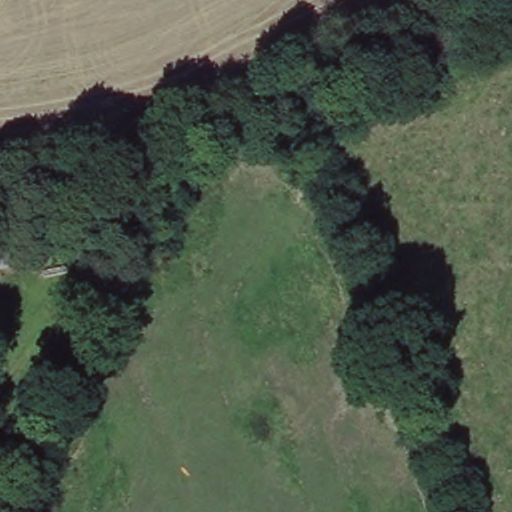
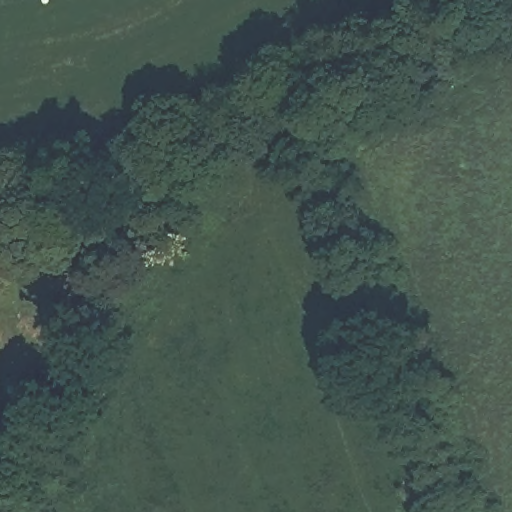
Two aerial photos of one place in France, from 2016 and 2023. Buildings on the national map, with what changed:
unchanged [(20,271),(0,275),(0,256),(16,252),(20,271)]

